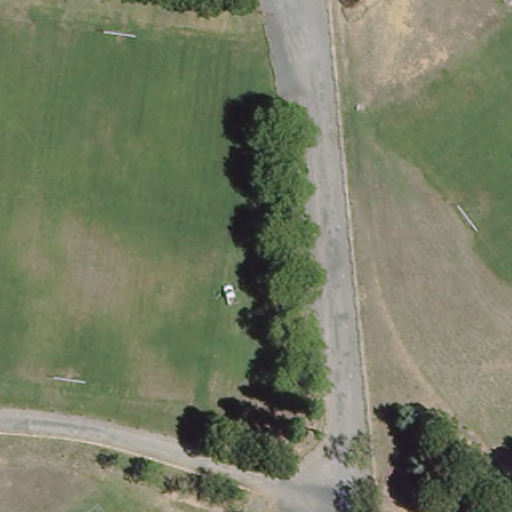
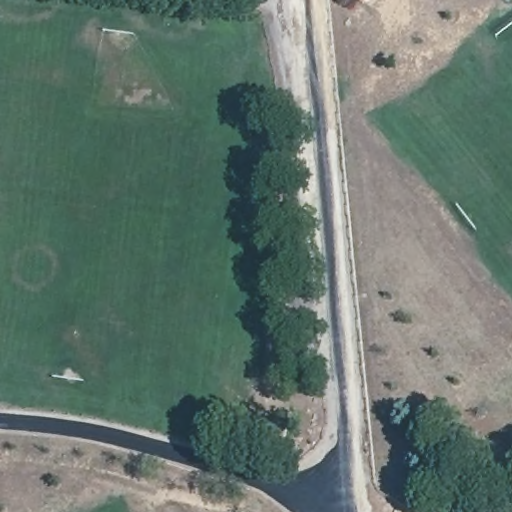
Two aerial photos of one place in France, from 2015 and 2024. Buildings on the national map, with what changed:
unchanged [(364,7),(359,0),(373,0),(364,7)]

